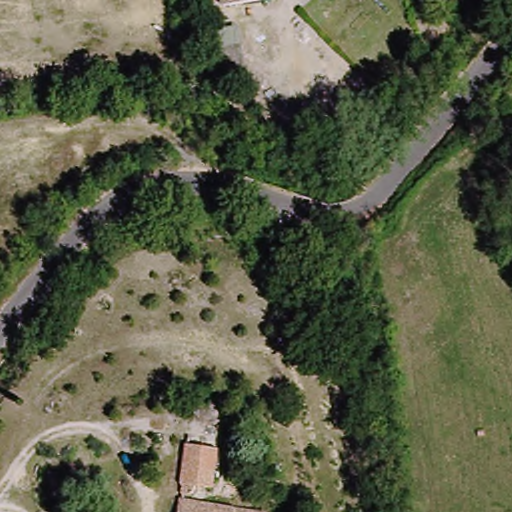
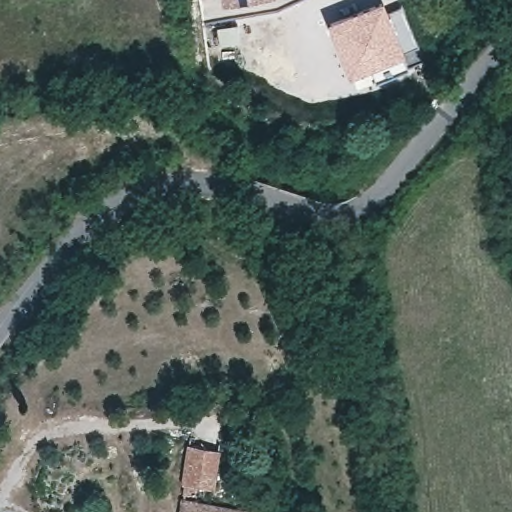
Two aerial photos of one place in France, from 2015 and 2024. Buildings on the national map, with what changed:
unchanged [(222,0),(236,0),(223,2),(222,0)]
new [(381,0),(383,0),(406,55),(349,77),(327,23),(381,0)]
unchanged [(222,448),(216,487),(201,485),(199,491),(182,490),(189,443),(222,448)]
unchanged [(233,512),(176,512),(178,502),(233,512)]

